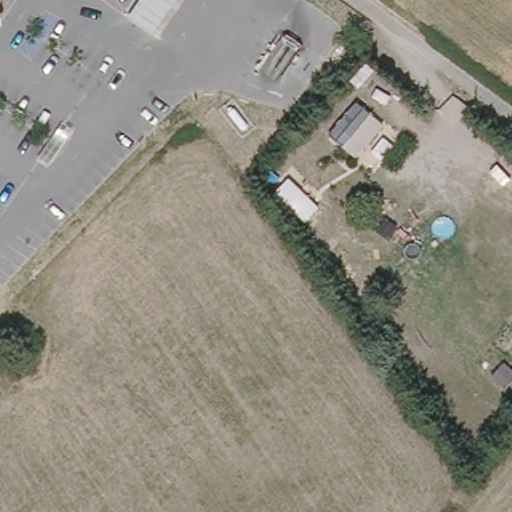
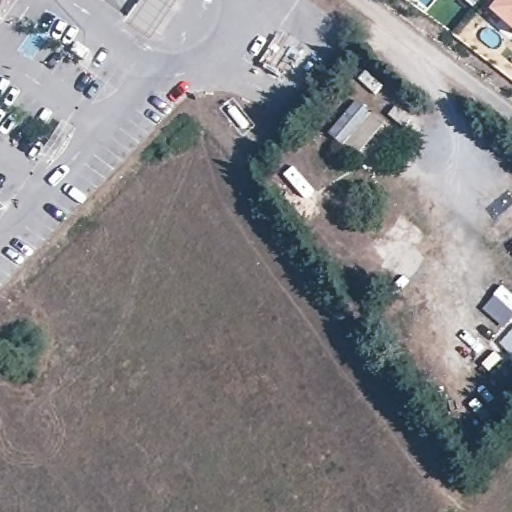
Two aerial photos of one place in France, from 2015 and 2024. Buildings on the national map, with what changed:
unchanged [(5,0),(1,7),(7,12),(5,26),(0,29),(0,0),(5,0)]
unchanged [(181,0),(159,32),(130,12),(139,0),(181,0)]
new [(463,0),(482,0),(473,9),(463,0)]
new [(512,0),(512,32),(490,11),(500,0),(512,0)]
unchanged [(356,100),(386,125),(363,156),(332,132),(356,100)]

